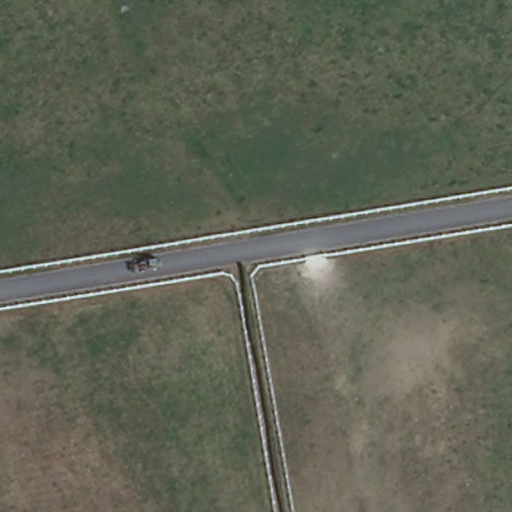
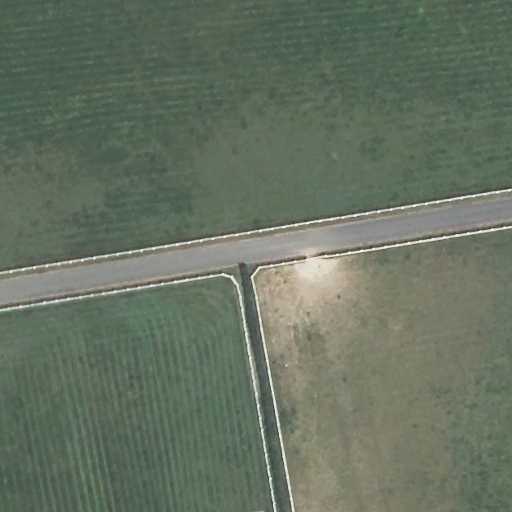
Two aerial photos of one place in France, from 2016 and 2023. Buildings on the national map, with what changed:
[]

